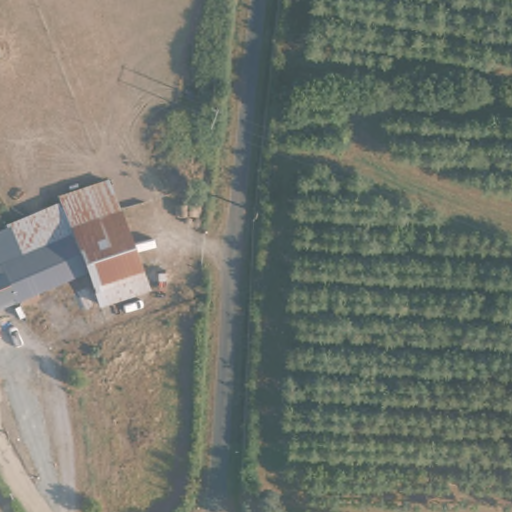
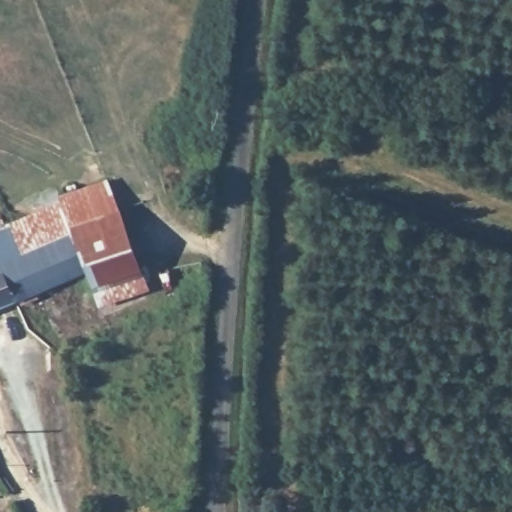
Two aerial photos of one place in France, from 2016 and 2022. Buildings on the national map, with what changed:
unchanged [(15,217),(69,198),(67,190),(116,175),(123,197),(125,207),(78,224),(93,266),(43,287),(46,293),(27,301),(24,294),(0,304),(0,226),(17,222),(15,217)]
unchanged [(125,207),(151,286),(107,301),(93,266),(78,224),(125,207)]

